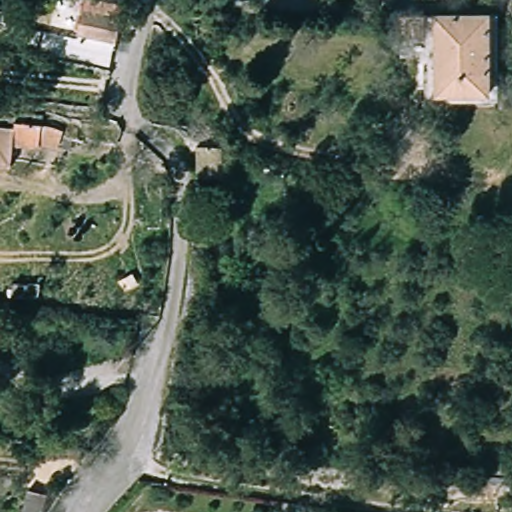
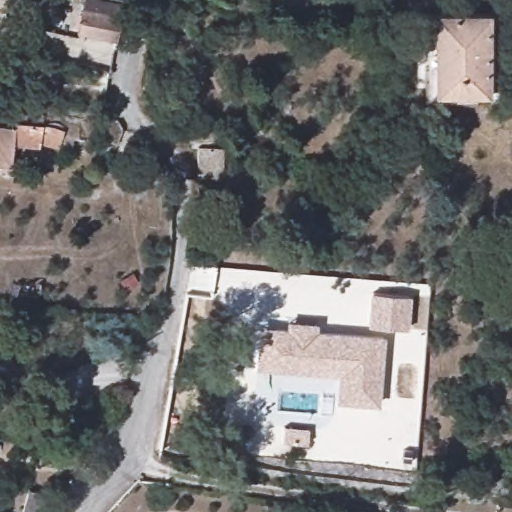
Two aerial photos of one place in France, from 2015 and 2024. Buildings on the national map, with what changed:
unchanged [(122,12),(119,36),(80,31),(83,8),(122,12)]
unchanged [(500,97),(491,97),(425,99),(425,56),(397,56),(395,11),(492,15),(502,15),(500,97)]
unchanged [(15,118),(42,120),(52,123),(62,126),(57,146),(38,141),(38,144),(12,141),(10,164),(0,164),(0,123),(14,124),(15,118)]
new [(410,296),(407,330),(367,328),(369,293),(410,296)]
new [(285,329),(287,321),(317,324),(317,331),(383,336),(379,407),(335,403),(338,376),(255,371),(258,327),(285,329)]
unchanged [(45,488),(42,512),(25,512),(27,486),(45,488)]

